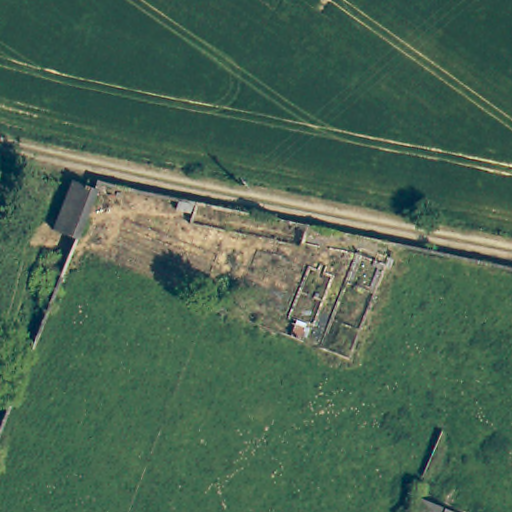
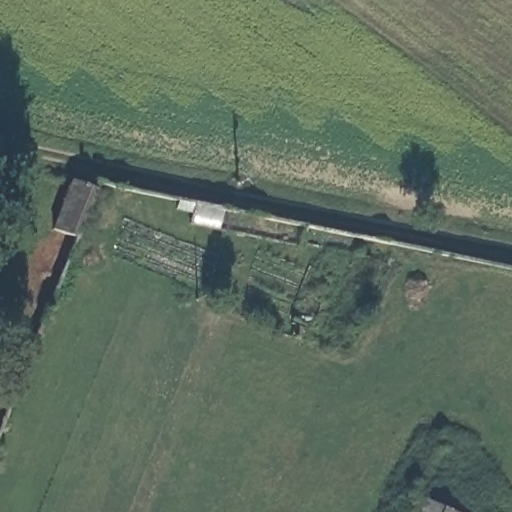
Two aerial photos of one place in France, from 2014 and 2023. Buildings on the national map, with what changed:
unchanged [(55,229),(75,182),(95,191),(78,238),(55,229)]
unchanged [(425,497),(458,512),(419,512),(425,497)]

